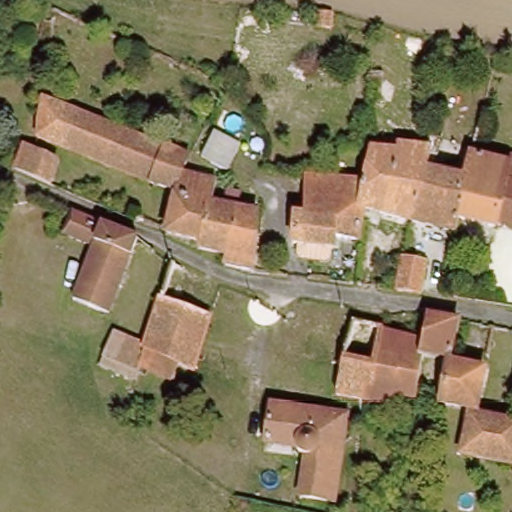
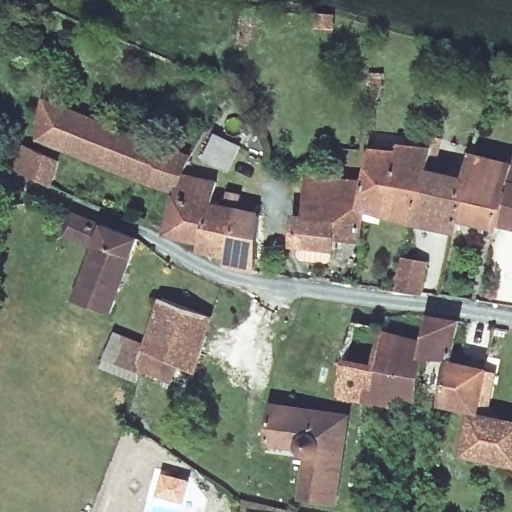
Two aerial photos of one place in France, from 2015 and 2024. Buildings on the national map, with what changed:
unchanged [(173,192),(40,136),(44,100),(187,158),(182,178),(215,183),(214,204),(243,210),(227,257),(202,250),(159,229),(173,192)]
unchanged [(241,111),(240,121),(223,118),(226,107),(241,111)]
unchanged [(243,139),(232,163),(208,150),(219,128),(243,139)]
unchanged [(25,145),(51,154),(43,182),(14,171),(25,145)]
unchanged [(456,219),(463,179),(472,151),(508,163),(491,227),(456,219)]
unchanged [(360,226),(304,217),(308,179),(370,183),(373,153),(427,160),(424,170),(409,224),(366,214),(360,226)]
unchanged [(508,163),(512,164),(512,232),(491,227),(508,163)]
unchanged [(409,224),(424,170),(463,179),(456,219),(451,232),(409,224)]
unchanged [(243,210),(258,211),(252,272),(225,266),(227,257),(243,210)]
unchanged [(110,313),(73,300),(77,281),(84,248),(65,239),(70,215),(133,238),(110,313)]
unchanged [(296,216),(304,217),(360,226),(355,246),(334,240),(328,253),(291,247),(296,216)]
unchanged [(380,271),(382,257),(397,261),(400,255),(418,259),(411,292),(391,290),(395,273),(380,271)]
unchanged [(215,308),(198,360),(186,356),(181,372),(150,361),(154,341),(168,294),(215,308)]
unchanged [(454,355),(417,348),(420,336),(425,311),(459,318),(454,355)]
unchanged [(374,328),(420,336),(417,348),(416,348),(408,394),(392,391),(389,402),(360,396),(334,391),(343,354),(368,359),(374,328)]
unchanged [(112,360),(121,333),(154,341),(150,361),(145,369),(112,360)]
unchanged [(480,408),(476,407),(447,401),(454,355),(462,357),(470,359),(469,368),(485,369),(480,408)]
unchanged [(350,420),(343,458),(333,507),(296,500),(303,464),(297,461),(298,454),(266,448),(272,415),(274,407),(332,417),(338,418),(350,420)]
unchanged [(475,414),(512,420),(512,466),(465,459),(475,414)]
new [(161,472),(190,480),(184,504),(155,496),(161,472)]

